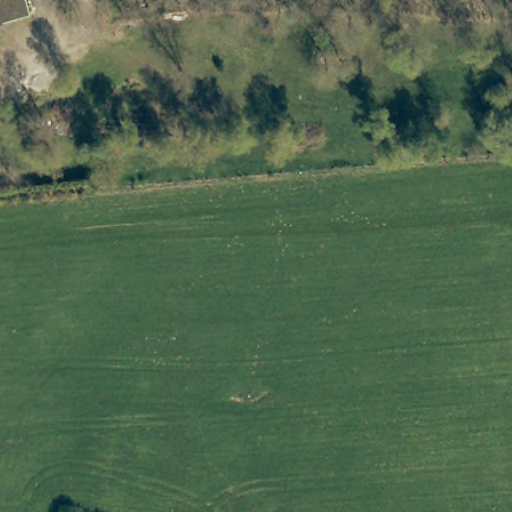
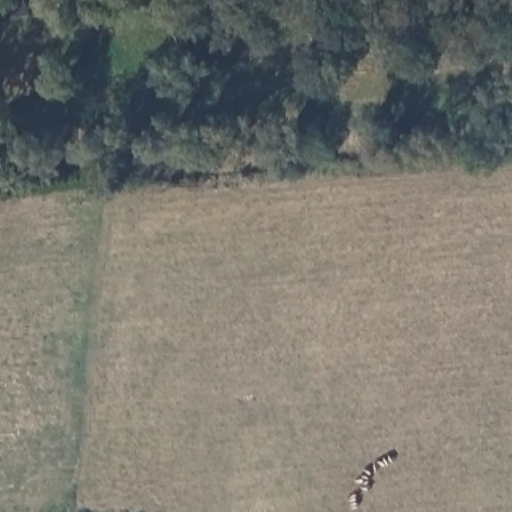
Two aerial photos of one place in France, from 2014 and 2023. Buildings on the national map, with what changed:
[]

